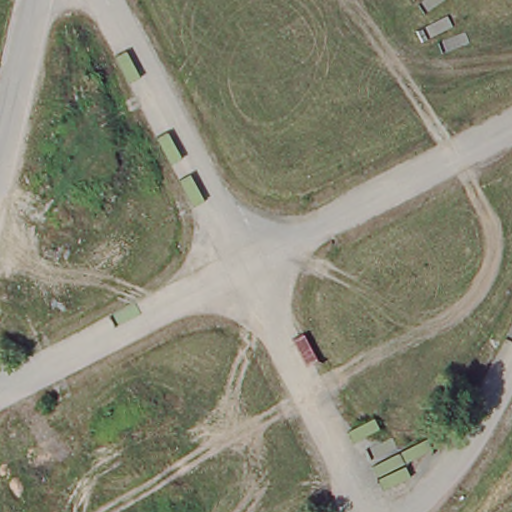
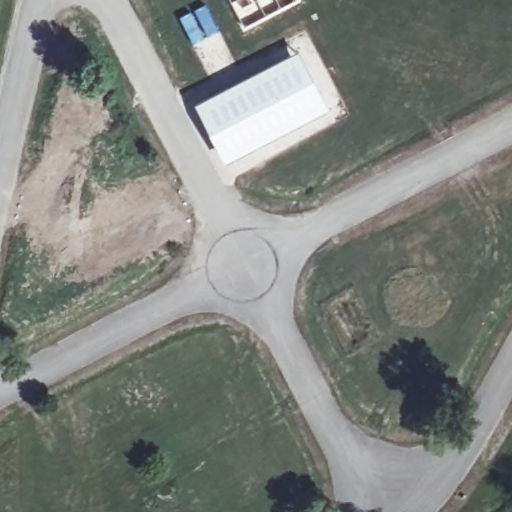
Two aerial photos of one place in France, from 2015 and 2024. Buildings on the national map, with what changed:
new [(180,17),(191,12),(197,23),(200,21),(195,10),(205,5),(219,31),(194,44),(180,17)]
new [(298,51),(330,108),(225,164),(195,104),(298,51)]

